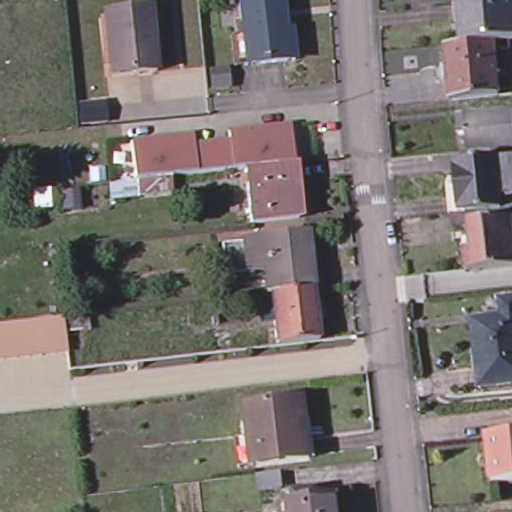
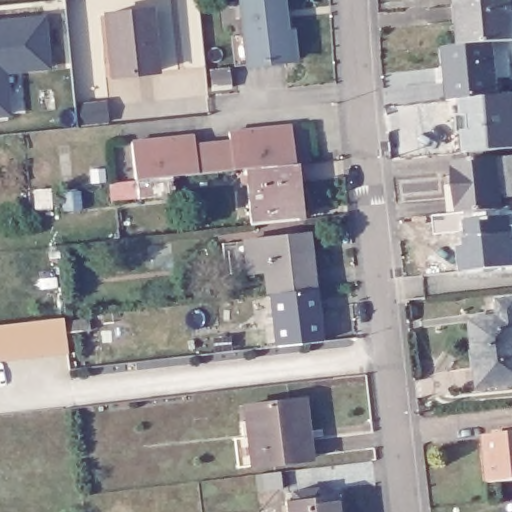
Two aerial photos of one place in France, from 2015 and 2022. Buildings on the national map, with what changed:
unchanged [(230,34),(243,32),(239,0),(281,0),(282,16),(290,15),(295,57),(287,58),(247,62),(234,64),(230,34)]
unchanged [(493,55),(497,99),(447,104),(442,50),(461,49),(459,27),(455,27),(452,6),(457,5),(479,4),(478,0),(492,0),(492,2),(510,0),(510,1),(512,1),(512,44),(507,45),(508,54),(493,55)]
unchanged [(156,70),(111,75),(105,12),(150,7),(156,70)]
new [(51,69),(5,74),(10,116),(0,118),(0,19),(45,15),(51,69)]
unchanged [(104,100),(105,120),(80,122),(78,103),(104,100)]
unchanged [(488,149),(488,147),(465,149),(464,132),(457,132),(455,114),(512,109),(512,147),(488,149)]
unchanged [(134,179),(130,141),(192,135),(193,144),(228,140),(227,131),(290,125),(292,162),(244,167),(170,175),(170,191),(138,195),(137,178),(134,179)]
unchanged [(512,245),(512,250),(512,265),(464,270),(462,247),(469,246),(466,224),(450,225),(449,212),(447,212),(444,184),(455,182),(452,160),(495,156),(512,154),(512,206),(507,206),(509,215),(510,238),(512,238),(512,245)]
unchanged [(244,167),(292,162),(299,217),(250,223),(244,167)]
unchanged [(312,286),(270,291),(267,291),(264,268),(247,270),(230,272),(226,241),(244,239),(306,232),(312,286)]
unchanged [(318,339),(275,343),(270,291),(312,286),(318,339)]
unchanged [(478,386),(470,320),(499,315),(497,299),(512,297),(512,382),(478,386)]
unchanged [(88,317),(90,328),(65,331),(67,350),(0,357),(0,322),(62,315),(63,320),(88,317)]
unchanged [(212,323),(211,316),(216,315),(217,323),(212,323)]
unchanged [(215,350),(212,331),(229,330),(230,341),(237,340),(237,347),(215,350)]
unchanged [(238,436),(253,435),(250,404),(307,397),(314,456),(257,463),(242,465),(238,436)]
unchanged [(489,481),(484,435),(505,433),(505,425),(512,424),(512,479),(489,481)]
unchanged [(285,487),(262,490),(260,472),(282,470),(285,487)]
unchanged [(285,499),(292,498),(291,490),(315,487),(317,495),(335,492),(338,512),(287,512),(285,499)]

